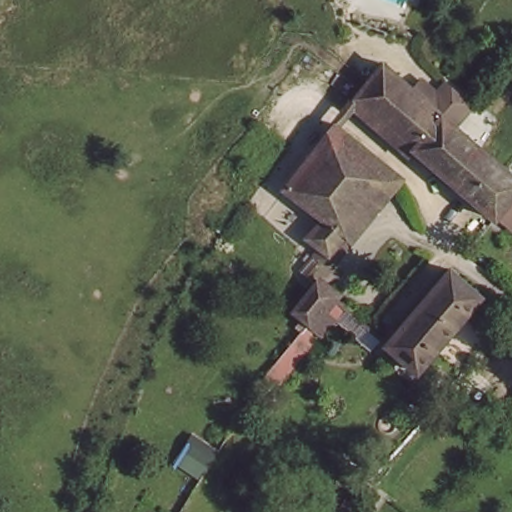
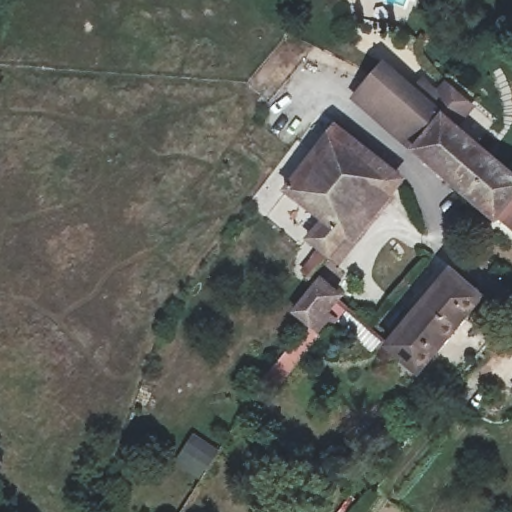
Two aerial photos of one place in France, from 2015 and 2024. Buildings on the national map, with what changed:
unchanged [(382,68),(410,91),(442,117),(413,151),(356,101),(382,68)]
unchanged [(423,77),(437,88),(445,79),(475,105),(455,128),(442,117),(411,92),(410,91),(423,77)]
unchanged [(495,224),(413,151),(442,117),(455,128),(512,178),(512,233),(497,222),(495,224)]
unchanged [(324,258),(305,241),(317,222),(303,210),(282,191),(327,135),(391,183),(324,258)]
unchanged [(420,376),(385,346),(450,272),(483,301),(420,376)]
unchanged [(340,301),(384,339),(371,353),(339,324),(279,387),(265,376),(306,326),(290,312),(321,276),(345,295),(340,301)]

